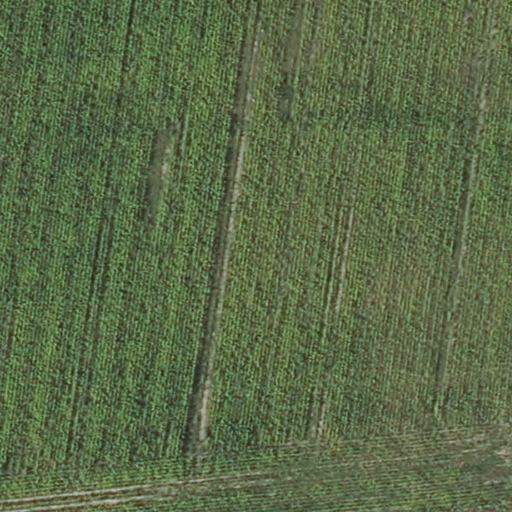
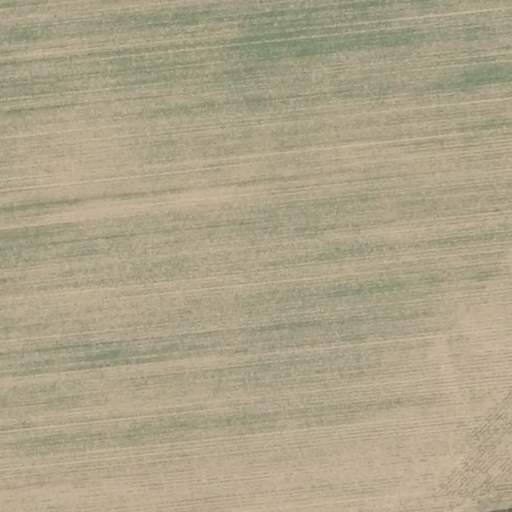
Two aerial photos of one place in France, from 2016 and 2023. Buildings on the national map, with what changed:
[]

